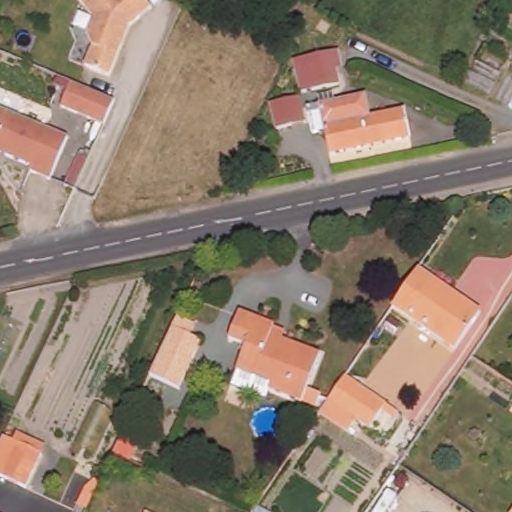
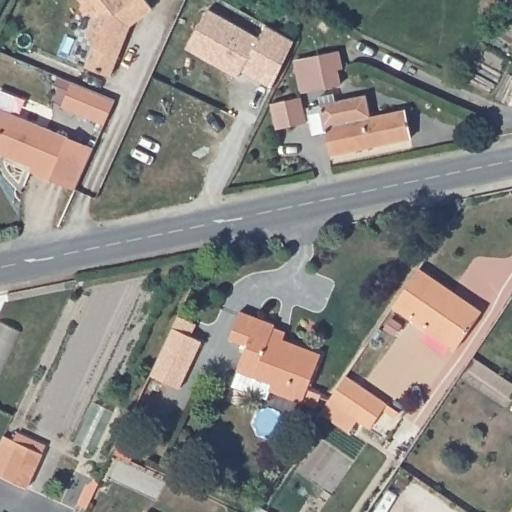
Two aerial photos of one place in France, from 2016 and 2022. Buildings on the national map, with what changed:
unchanged [(115,72),(90,65),(95,45),(87,32),(92,16),(75,0),(147,0),(128,19),(115,72)]
new [(258,38),(267,24),(295,40),(272,88),(241,71),(237,77),(200,57),(186,48),(191,40),(207,10),(258,38)]
unchanged [(325,56),(337,54),(340,65),(344,86),(305,94),(298,62),(325,56)]
new [(72,82),(116,100),(105,124),(62,105),(72,82)]
unchanged [(328,133),(317,136),(311,109),(324,107),(322,99),(337,96),(338,104),(371,97),(375,119),(408,112),(414,140),(333,157),(328,133)]
unchanged [(303,98),(309,124),(280,131),(273,105),(303,98)]
unchanged [(50,181),(29,172),(31,167),(0,155),(0,111),(67,139),(50,181)]
unchanged [(421,271),(483,313),(458,350),(396,307),(421,271)]
unchanged [(253,388),(257,378),(240,372),(250,347),(232,340),(242,312),(277,326),(277,328),(287,332),(285,341),(322,355),(305,403),(273,392),(272,396),(253,388)]
unchanged [(153,377),(175,328),(180,318),(197,326),(192,337),(204,342),(182,390),(153,377)]
unchanged [(332,402),(348,377),(389,406),(372,430),(332,402)]
unchanged [(121,442),(131,420),(144,426),(134,448),(121,442)]
unchanged [(49,447),(46,455),(30,490),(0,476),(0,451),(3,445),(7,437),(17,442),(20,434),(49,447)]
unchanged [(512,511),(512,512),(511,512),(512,511)]

